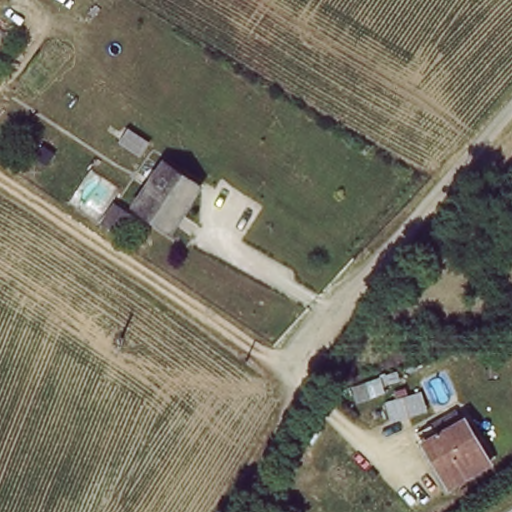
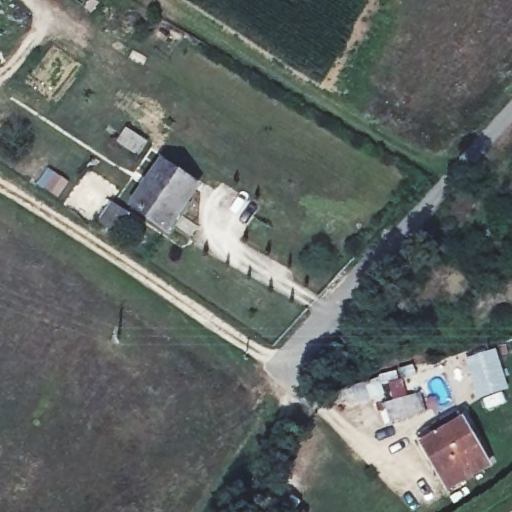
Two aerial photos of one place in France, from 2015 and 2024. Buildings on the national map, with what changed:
new [(2,5),(0,4),(0,0),(6,0),(2,5)]
new [(0,45),(0,31),(5,33),(0,45)]
unchanged [(198,185),(189,199),(182,199),(167,221),(137,201),(162,162),(198,185)]
new [(467,361),(495,351),(509,388),(478,399),(467,361)]
unchanged [(422,445),(465,421),(488,464),(445,487),(422,445)]

